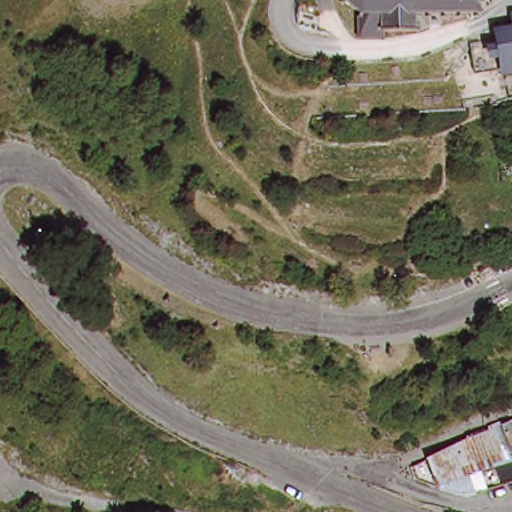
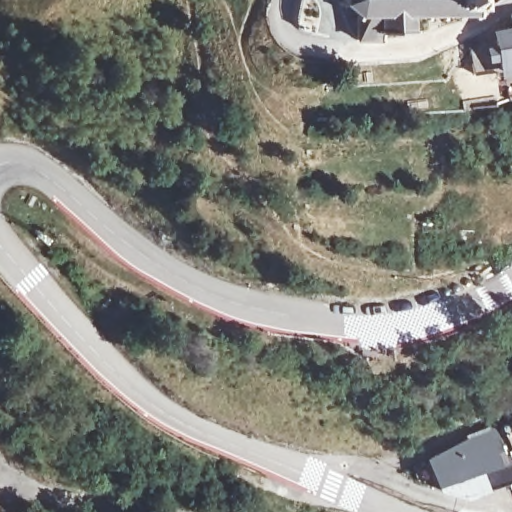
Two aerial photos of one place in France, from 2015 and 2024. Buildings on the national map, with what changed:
unchanged [(330,2),(328,0),(333,0),(330,2)]
unchanged [(347,11),(334,0),(466,0),(466,6),(471,6),(471,11),(466,11),(466,14),(461,14),(461,9),(448,9),(448,14),(443,14),(443,9),(433,9),(432,14),(428,14),(428,9),(416,9),(416,14),(411,14),(411,9),(400,9),(400,24),(405,24),(405,27),(342,28),(341,24),(346,24),(347,11)]
unchanged [(467,75),(463,48),(470,47),(490,43),(490,35),(510,32),(508,17),(512,16),(512,67),(476,73),(467,75)]
unchanged [(504,443),(512,461),(512,467),(460,490),(436,483),(432,480),(420,455),(481,422),(479,418),(492,411),(495,409),(501,423),(512,419),(512,440),(509,441),(504,443)]

